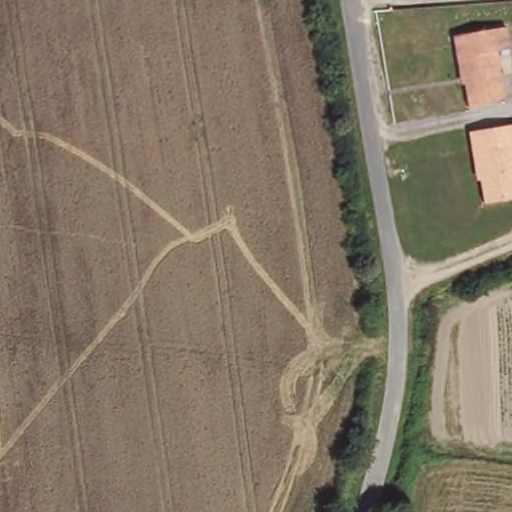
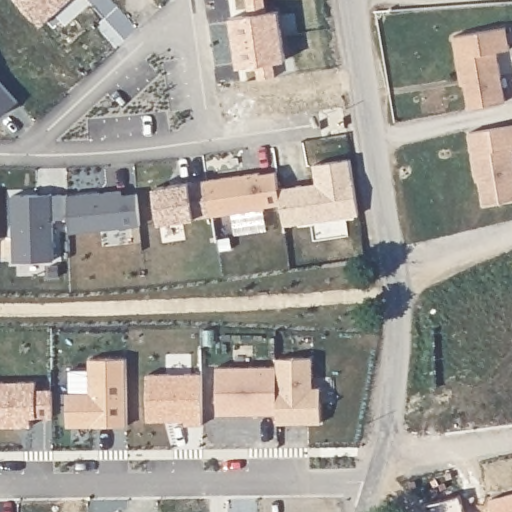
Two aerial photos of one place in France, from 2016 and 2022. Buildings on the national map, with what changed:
new [(67,0),(40,25),(17,0),(67,0)]
new [(281,11),(289,61),(276,63),(278,77),(262,80),(260,65),(242,68),(234,19),(252,16),(250,0),(267,0),(269,14),(281,11)]
unchanged [(512,48),(502,50),(511,100),(474,106),(469,76),(466,76),(458,34),(511,25),(512,31),(512,48)]
unchanged [(480,181),(477,182),(468,132),(512,125),(512,197),(483,202),(480,181)]
new [(212,215),(206,179),(260,171),(261,173),(276,171),(281,204),(265,205),(266,208),(212,215)]
new [(159,222),(155,185),(190,180),(206,179),(212,215),(195,218),(159,222)]
new [(121,190),(122,193),(137,192),(141,225),(67,231),(67,219),(68,195),(121,190)]
new [(12,195),(68,195),(67,219),(52,220),(54,259),(13,260),(12,195)]
new [(67,391),(90,391),(89,357),(127,357),(127,425),(67,425),(67,391)]
new [(277,423),(276,413),(277,366),(277,357),(313,357),(313,386),(321,386),(321,422),(277,423)]
new [(217,413),(217,366),(277,366),(276,413),(217,413)]
new [(147,373),(202,372),(202,425),(185,425),(185,420),(148,420),(147,373)]
new [(55,386),(55,419),(34,419),(34,428),(0,429),(0,388),(55,386)]

